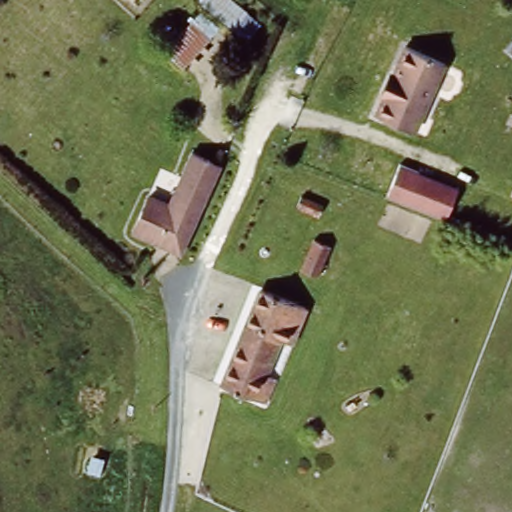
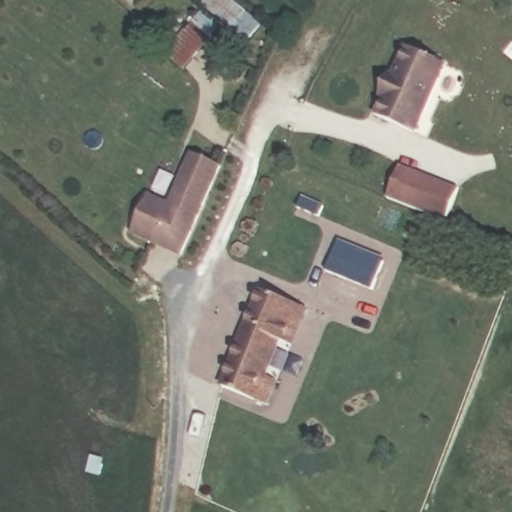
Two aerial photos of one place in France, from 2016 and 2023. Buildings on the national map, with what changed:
unchanged [(234,0),(248,10),(233,36),(201,6),(204,0),(234,0)]
unchanged [(191,22),(208,43),(178,74),(163,53),(191,22)]
unchanged [(408,46),(444,61),(412,133),(374,117),(408,46)]
unchanged [(166,216),(188,162),(198,140),(229,153),(221,176),(191,249),(159,233),(166,216)]
unchanged [(457,187),(445,220),(384,199),(397,166),(457,187)]
unchanged [(184,267),(134,244),(149,210),(166,216),(159,233),(191,249),(184,267)]
demolished [(318,234),(333,242),(321,266),(305,260),(318,234)]
new [(376,290),(329,271),(341,240),(386,258),(376,290)]
unchanged [(266,285),(306,301),(291,340),(276,334),(262,370),(278,376),(269,393),(229,375),(266,285)]

